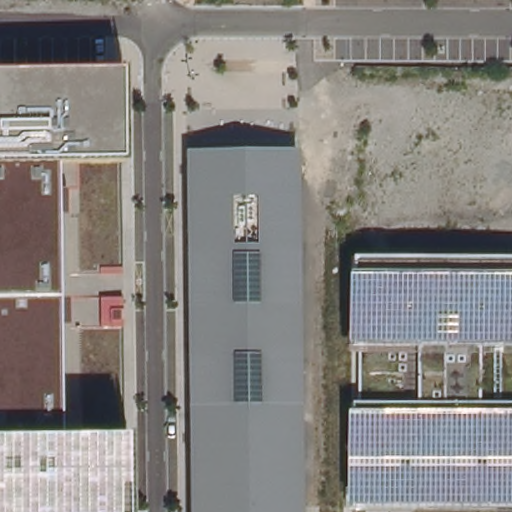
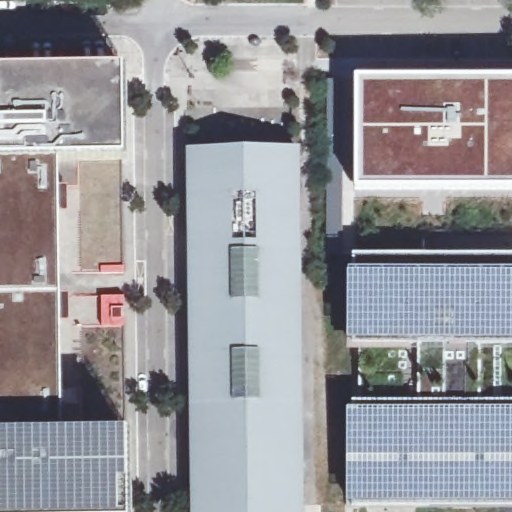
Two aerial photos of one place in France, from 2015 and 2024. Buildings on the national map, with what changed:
new [(512,68),(512,240),(364,240),(364,68),(512,68)]
unchanged [(123,159),(53,159),(59,432),(128,434),(128,512),(0,512),(0,71),(121,71),(123,159)]
new [(329,254),(329,81),(343,81),(343,254),(329,254)]
unchanged [(193,406),(191,406),(191,401),(193,401),(193,356),(191,356),(191,351),(193,351),(193,306),(191,306),(191,301),(193,301),(192,256),(190,256),(189,251),(191,251),(191,206),(189,206),(189,201),(191,201),(191,156),(188,156),(188,151),(299,150),(299,155),(296,155),(296,200),(299,200),(299,205),(296,205),(297,250),(300,250),(300,255),(297,255),(298,300),(300,300),(301,305),(298,305),(299,350),(301,350),(301,355),(299,355),(299,400),(301,400),(301,405),(299,405),(299,450),(302,450),(302,455),(299,455),(301,500),(303,500),(303,505),(301,505),(194,507),(193,507),(193,502),(194,502),(194,457),(193,457),(192,452),(194,452),(194,428),(193,406)]
unchanged [(348,505),(356,254),(512,256),(512,508),(348,505)]
unchanged [(195,512),(194,507),(301,505),(301,512),(195,512)]

